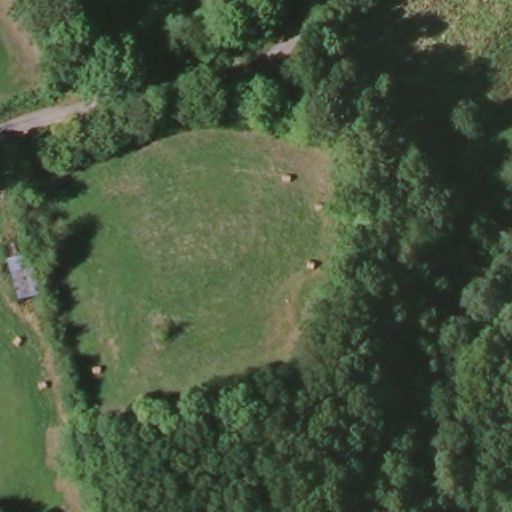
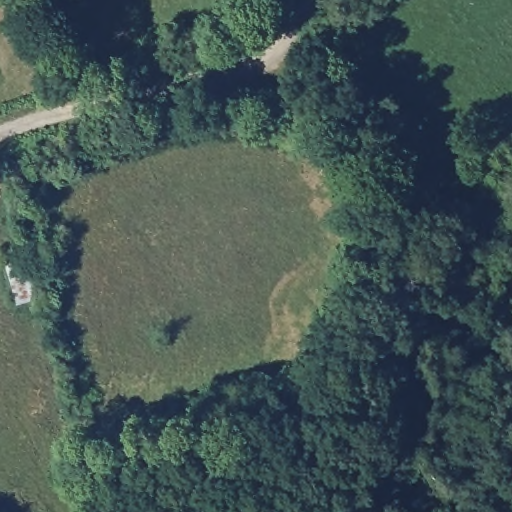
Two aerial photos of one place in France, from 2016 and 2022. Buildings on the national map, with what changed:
unchanged [(38,299),(15,306),(2,261),(25,254),(38,299)]

